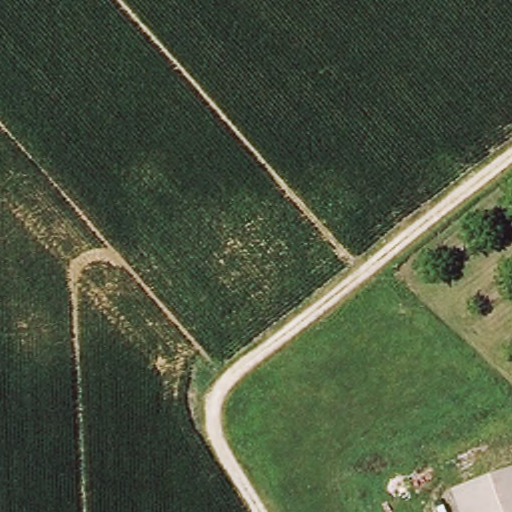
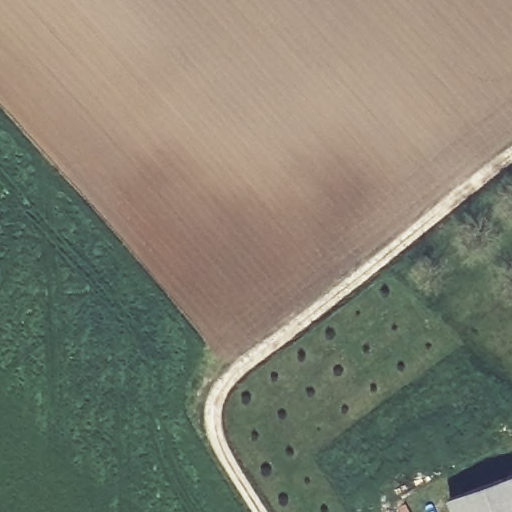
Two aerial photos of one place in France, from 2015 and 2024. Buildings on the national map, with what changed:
unchanged [(512,475),(512,512),(454,512),(448,499),(512,475)]

